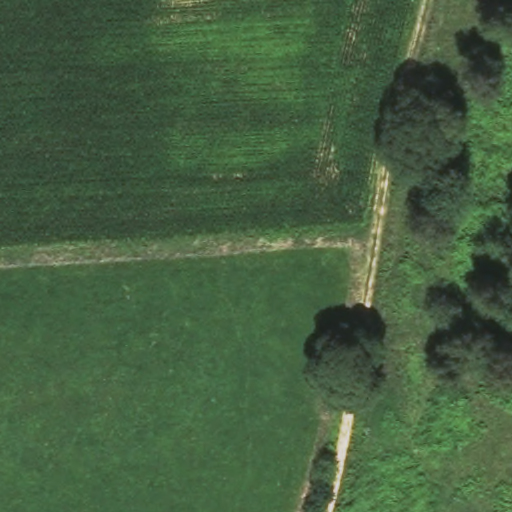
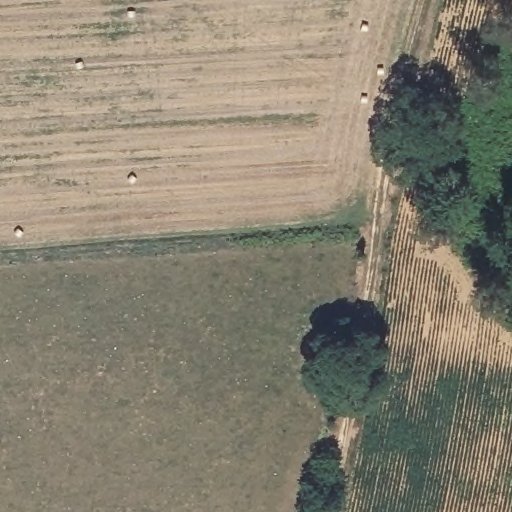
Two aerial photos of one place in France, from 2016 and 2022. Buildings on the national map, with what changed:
unchanged [(460,78),(450,108),(420,97),(431,68),(460,78)]

